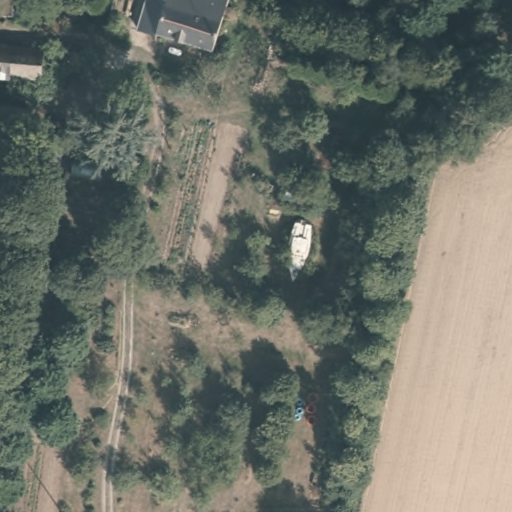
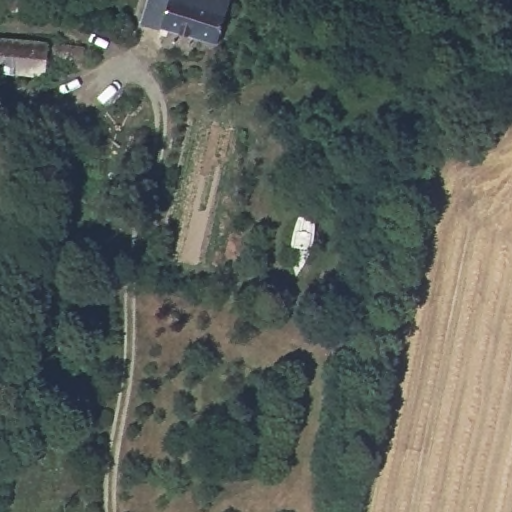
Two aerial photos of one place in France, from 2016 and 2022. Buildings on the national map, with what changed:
unchanged [(227,10),(220,41),(144,24),(150,0),(240,0),(238,11),(227,10)]
unchanged [(74,62),(41,59),(39,73),(0,69),(0,40),(76,48),(74,62)]
unchanged [(0,128),(0,102),(20,106),(16,131),(0,128)]

